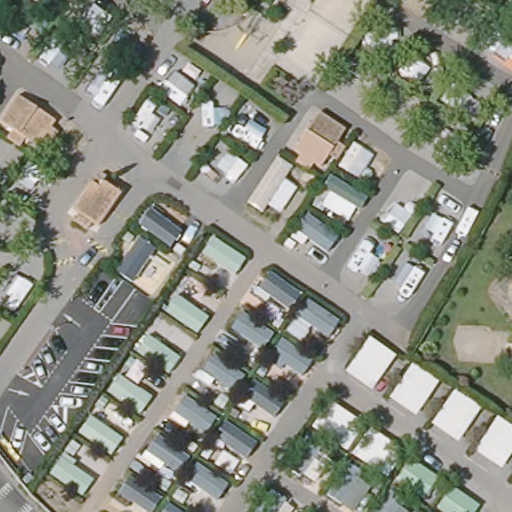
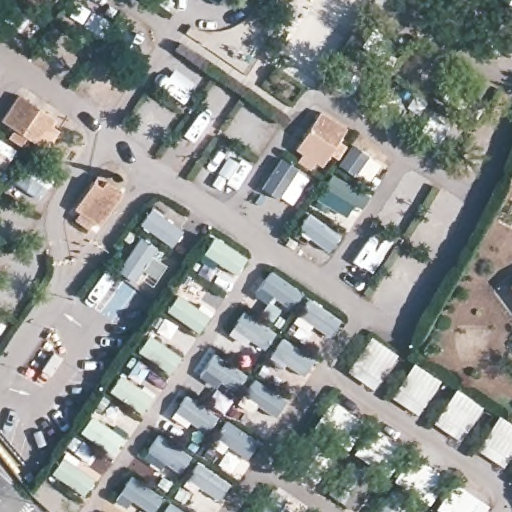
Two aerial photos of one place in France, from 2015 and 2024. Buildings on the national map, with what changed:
unchanged [(50,145),(43,140),(39,146),(26,138),(13,130),(1,121),(18,95),(56,120),(52,127),(59,131),(50,145)]
unchanged [(297,161),(302,154),(295,150),(320,111),(346,129),(338,141),(346,146),(337,160),(329,154),(321,167),(315,162),(310,170),(297,161)]
unchanged [(21,146),(8,137),(13,130),(25,137),(26,138),(21,146)]
unchanged [(277,156),(293,167),(285,180),(297,187),(281,210),(269,204),(263,211),(248,202),(277,156)]
unchanged [(312,203),(330,172),(368,198),(361,209),(355,206),(347,221),(312,203)]
unchanged [(74,220),(79,213),(73,209),(96,175),(122,192),(99,226),(93,222),(88,230),(74,220)]
unchanged [(512,282),(512,296),(505,287),(512,282)]

